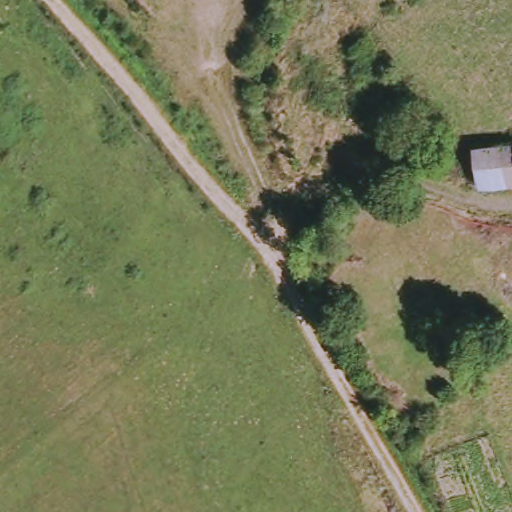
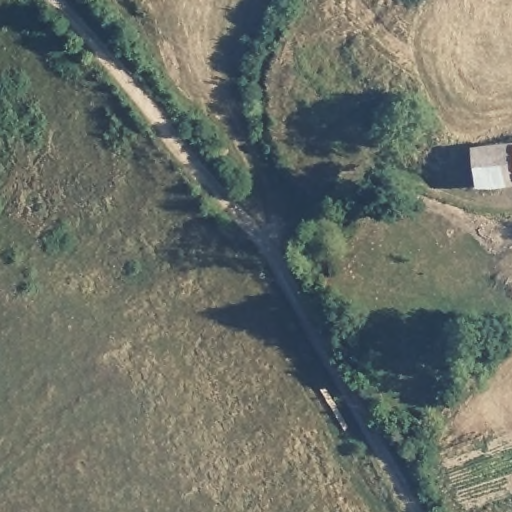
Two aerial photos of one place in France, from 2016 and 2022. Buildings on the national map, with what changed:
unchanged [(512,150),(512,189),(492,191),(486,190),(482,153),(512,150)]

